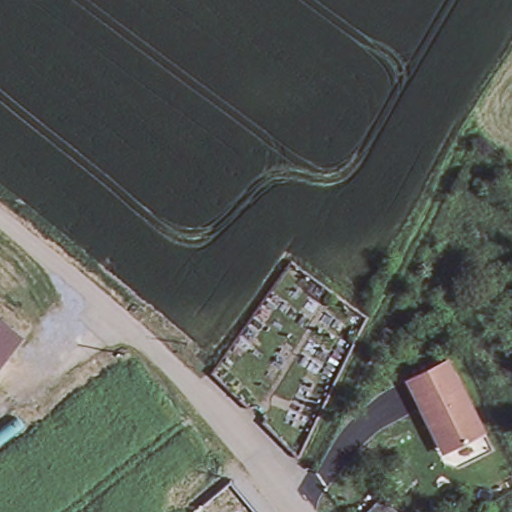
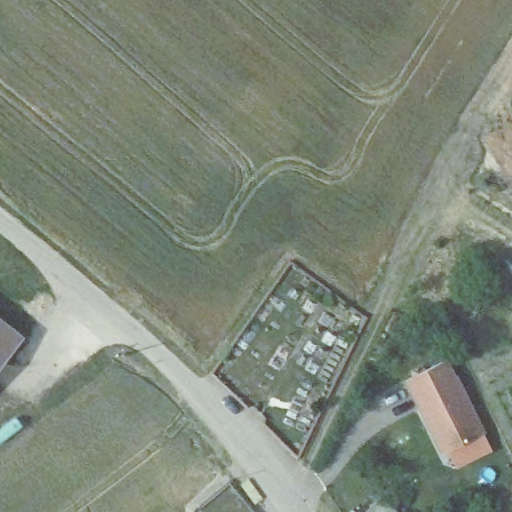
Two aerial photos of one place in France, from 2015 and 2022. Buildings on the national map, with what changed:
unchanged [(487,165),(475,181),(467,174),(479,159),(487,165)]
unchanged [(22,337),(6,358),(0,353),(0,320),(22,337)]
unchanged [(0,366),(0,353),(6,358),(0,366)]
unchanged [(432,426),(429,421),(409,381),(448,361),(455,375),(455,376),(457,376),(486,434),(452,451),(450,452),(445,454),(432,426)]
unchanged [(398,512),(383,512),(390,504),(398,512)]

